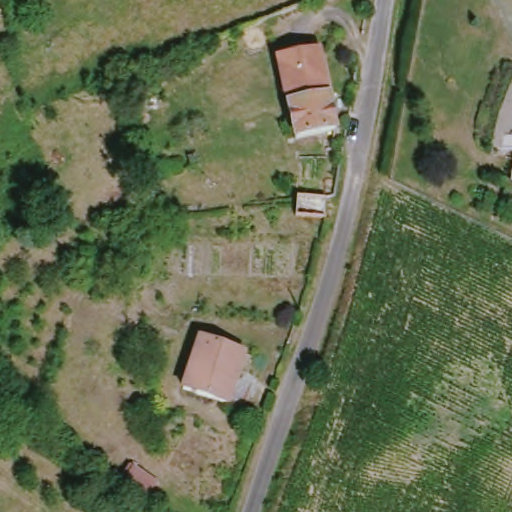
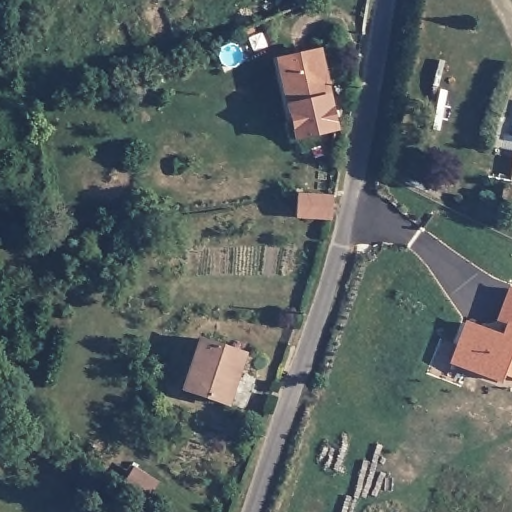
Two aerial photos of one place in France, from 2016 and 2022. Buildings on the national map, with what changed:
unchanged [(281,62),(287,60),(320,52),(332,96),(293,106),(286,80),(281,62)]
unchanged [(332,96),(337,130),(297,138),(293,106),(332,96)]
unchanged [(303,197),(332,197),(329,224),(302,221),(303,206),(303,197)]
new [(512,288),(512,378),(503,374),(500,382),(450,363),(465,321),(502,334),(504,327),(495,322),(508,286),(512,288)]
unchanged [(252,342),(226,415),(184,399),(209,327),(252,342)]

